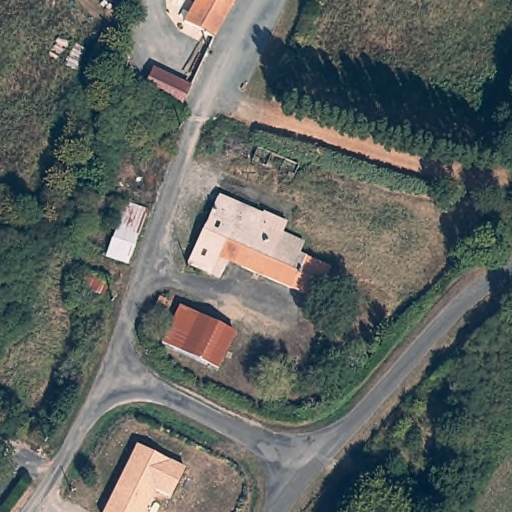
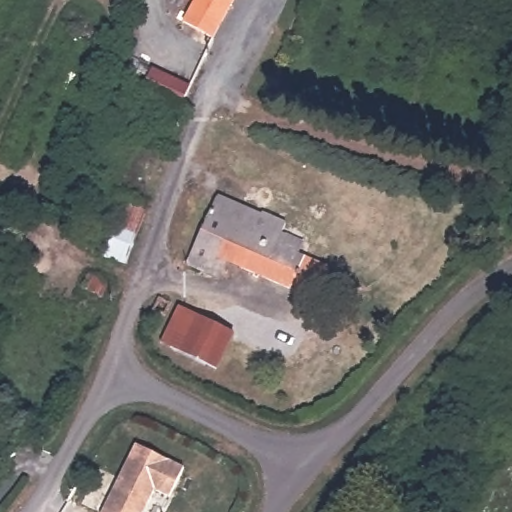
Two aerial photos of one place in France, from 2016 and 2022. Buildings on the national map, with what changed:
unchanged [(184,25),(195,0),(234,0),(215,40),(184,25)]
unchanged [(232,267),(230,265),(220,281),(187,268),(202,236),(213,216),(222,200),(288,232),(286,236),(300,242),(297,248),(306,252),(302,258),(308,263),(311,260),(332,273),(313,305),(290,292),(234,263),(232,267)]
unchanged [(129,201),(150,209),(128,268),(109,261),(124,216),(129,201)]
unchanged [(100,297),(88,291),(100,267),(112,273),(100,297)]
unchanged [(240,328),(212,380),(159,353),(186,301),(240,328)]
unchanged [(185,468),(171,501),(154,493),(144,512),(101,512),(135,444),(185,468)]

